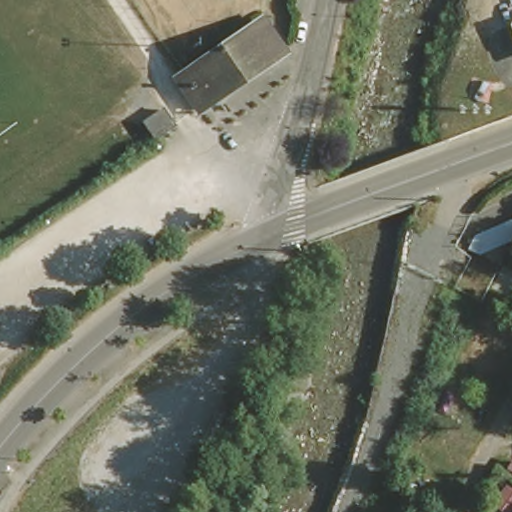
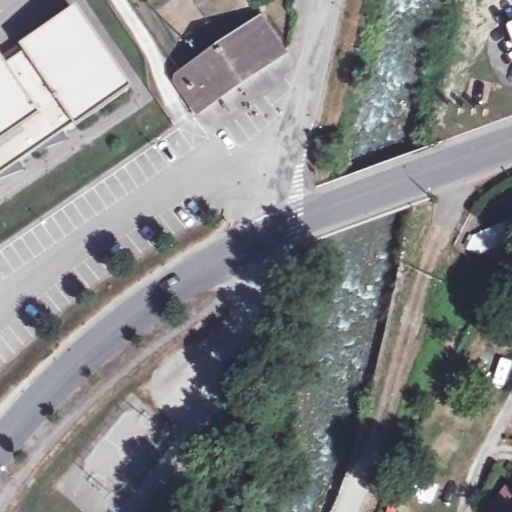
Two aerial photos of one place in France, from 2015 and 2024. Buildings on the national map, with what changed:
new [(0,173),(0,54),(7,64),(25,50),(21,45),(78,6),(131,85),(75,122),(0,173)]
unchanged [(179,78),(264,21),(284,51),(199,109),(179,78)]
demolished [(176,136),(156,149),(145,131),(165,119),(175,134),(176,136)]
unchanged [(479,240),(498,232),(485,259),(472,253),(479,240)]

